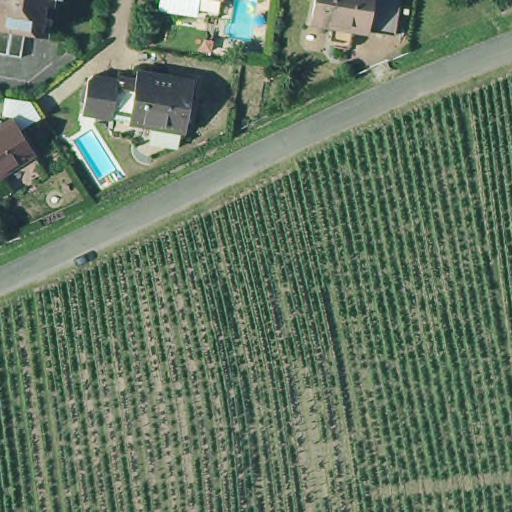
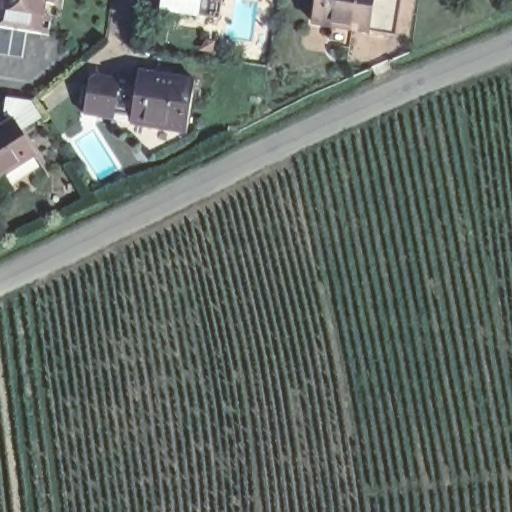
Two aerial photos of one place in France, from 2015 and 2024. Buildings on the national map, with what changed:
unchanged [(47,30),(30,28),(0,24),(0,0),(50,0),(48,12),(55,13),(52,31),(47,30)]
unchanged [(54,0),(58,0),(58,1),(54,0)]
unchanged [(184,0),(199,0),(198,2),(184,0)]
unchanged [(328,14),(307,10),(308,0),(366,0),(362,21),(347,18),(345,32),(325,29),(328,14)]
unchanged [(390,26),(362,21),(366,0),(394,0),(393,4),(390,26)]
unchanged [(27,55),(0,51),(0,24),(30,28),(27,55)]
unchanged [(88,108),(94,74),(99,70),(123,73),(123,70),(141,73),(142,65),(197,74),(188,127),(133,119),(133,117),(117,114),(88,108)]
unchanged [(43,151),(0,178),(0,126),(20,114),(43,151)]

